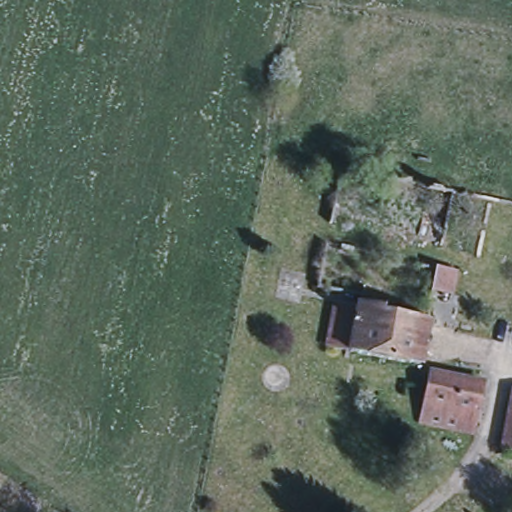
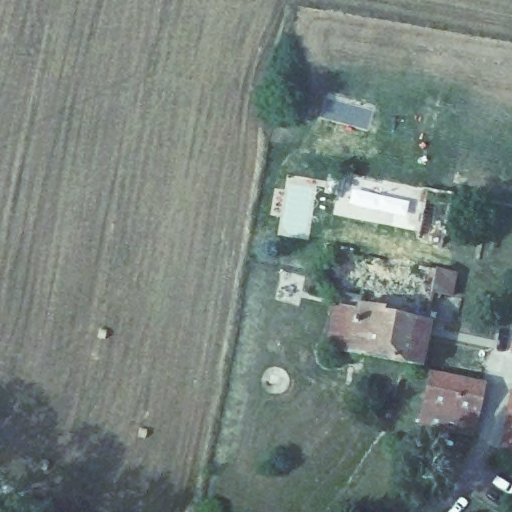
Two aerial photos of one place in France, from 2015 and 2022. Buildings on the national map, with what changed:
unchanged [(433,292),(431,292),(435,270),(455,273),(451,296),(433,292)]
unchanged [(336,305),(358,310),(359,303),(383,308),(382,313),(408,318),(409,310),(429,314),(428,321),(419,367),(350,353),(328,349),(332,325),(336,305)]
unchanged [(429,374),(484,385),(474,433),(420,422),(429,374)]
unchanged [(500,450),(512,389),(512,452),(500,450)]

